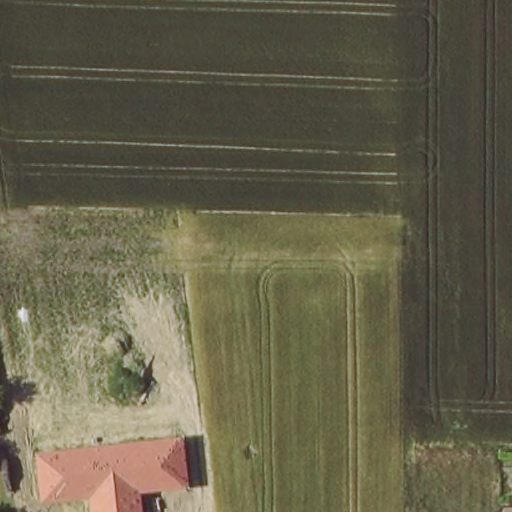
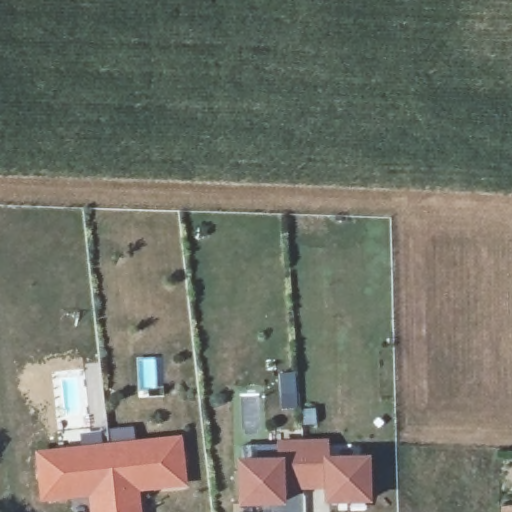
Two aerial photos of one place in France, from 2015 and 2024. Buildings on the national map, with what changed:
unchanged [(189,488),(140,493),(142,512),(90,512),(90,498),(40,503),(35,452),(184,435),(189,488)]
new [(276,464),(275,447),(323,446),(323,463),(363,462),(365,503),(323,504),(323,487),(277,488),(278,504),(236,505),(235,465),(276,464)]

